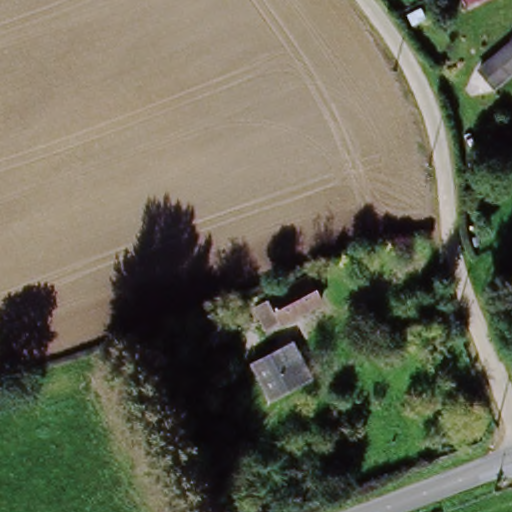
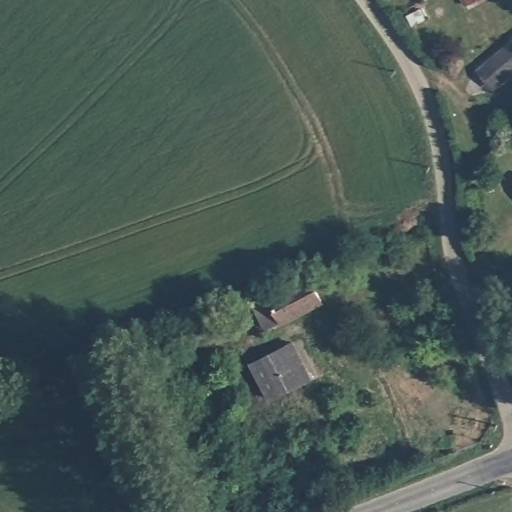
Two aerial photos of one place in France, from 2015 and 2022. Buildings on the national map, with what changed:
unchanged [(480,0),(468,5),(466,0),(480,0)]
unchanged [(512,69),(490,84),(479,68),(512,46),(512,69)]
unchanged [(269,303),(265,296),(306,281),(309,288),(316,307),(276,321),(259,327),(251,310),(269,303)]
unchanged [(207,316),(221,308),(229,321),(214,330),(207,316)]
unchanged [(293,342),(309,381),(267,402),(248,364),(293,342)]

